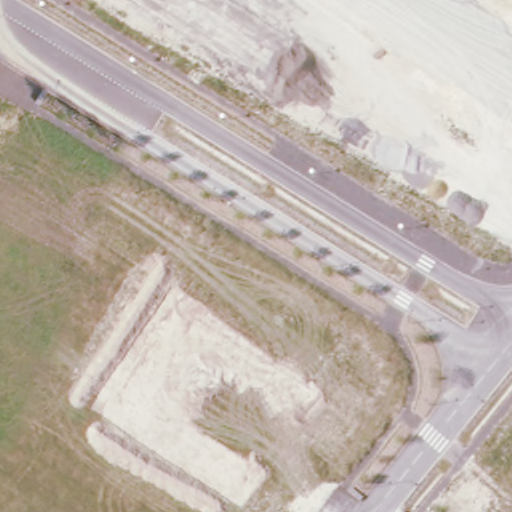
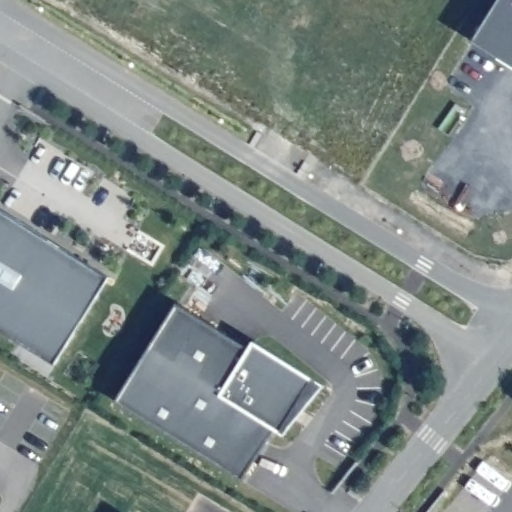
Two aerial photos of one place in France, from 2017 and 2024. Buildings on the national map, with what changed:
new [(498,0),(512,0),(512,66),(472,41),(498,0)]
new [(108,277),(55,364),(0,330),(0,211),(108,277)]
new [(250,349),(255,342),(315,380),(282,435),(276,431),(243,482),(116,404),(177,305),(250,349)]

